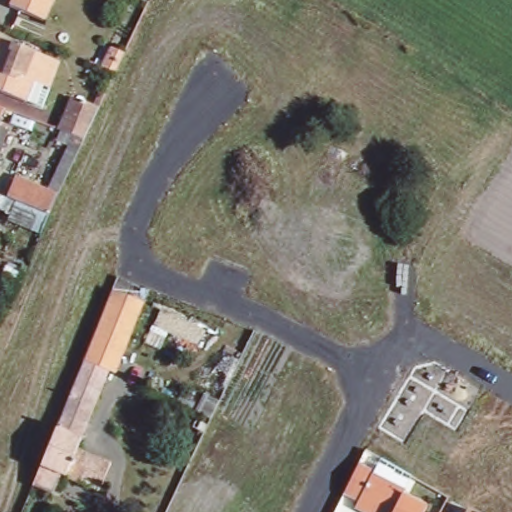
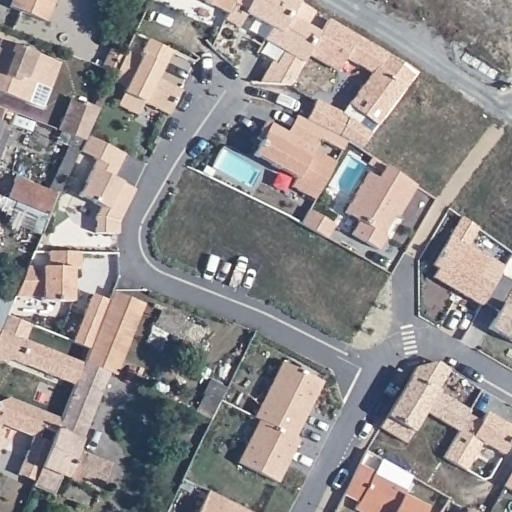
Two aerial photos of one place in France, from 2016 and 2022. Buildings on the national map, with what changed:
unchanged [(45,22),(11,7),(14,0),(56,0),(45,22)]
new [(272,27),(246,14),(240,26),(227,20),(230,12),(210,4),(201,0),(298,0),(300,1),(282,33),(272,27)]
new [(291,85),(262,82),(273,63),(277,65),(285,50),(266,39),(272,27),(282,33),(300,1),(315,11),(308,25),(322,33),(305,61),(291,85)]
new [(317,101),(343,114),(373,73),(346,57),(338,71),(308,54),(322,33),(329,20),(395,59),(417,73),(360,149),(347,141),(308,120),(317,101)]
new [(173,50),(165,64),(158,77),(183,90),(169,115),(145,101),(138,116),(117,105),(124,92),(126,89),(111,79),(114,73),(102,68),(111,47),(126,54),(128,52),(140,57),(148,40),(173,50)]
unchanged [(35,105),(0,90),(0,68),(2,65),(0,64),(0,55),(6,41),(25,48),(27,44),(34,46),(32,51),(52,59),(35,105)]
unchanged [(87,142),(60,132),(74,98),(103,110),(87,142)]
new [(347,141),(341,151),(321,140),(315,149),(336,161),(316,199),(292,188),(298,179),(253,154),(261,141),(258,139),(268,121),(288,132),(298,116),(347,141)]
unchanged [(0,142),(0,124),(6,126),(0,142)]
new [(126,154),(115,178),(123,183),(135,189),(120,222),(120,233),(96,233),(97,216),(102,206),(80,194),(99,158),(81,150),(59,198),(47,193),(69,148),(57,141),(60,132),(87,142),(90,136),(126,154)]
demolished [(321,162),(334,132),(361,148),(363,144),(394,158),(373,187),(321,162)]
new [(373,157),(380,162),(376,168),(369,163),(373,157)]
new [(417,186),(399,217),(396,214),(384,233),(388,236),(380,249),(352,233),(360,220),(345,211),(368,172),(378,178),(386,165),(417,186)]
unchanged [(51,221),(10,203),(19,181),(62,199),(51,221)]
new [(44,236),(9,220),(11,215),(0,210),(0,194),(12,200),(10,203),(51,221),(44,236)]
new [(480,228),(470,245),(505,265),(500,274),(483,303),(482,305),(434,277),(440,267),(435,264),(451,236),(462,217),(480,228)]
unchanged [(1,228),(0,230),(0,227),(1,228)]
new [(28,267),(49,267),(49,252),(80,252),(80,269),(73,269),(72,302),(42,301),(42,297),(15,297),(28,267)]
new [(512,281),(512,342),(489,328),(498,312),(483,303),(500,274),(512,281)]
new [(93,350),(74,340),(92,294),(112,301),(93,350)]
unchanged [(90,355),(93,350),(115,294),(145,307),(115,376),(87,364),(90,355)]
new [(31,325),(25,340),(73,360),(64,381),(10,359),(8,364),(0,360),(0,331),(7,316),(31,325)]
unchanged [(1,331),(0,332),(0,330),(1,331)]
new [(283,362),(323,382),(295,438),(260,420),(255,418),(283,362)]
new [(450,426),(425,411),(406,443),(380,428),(417,367),(437,362),(450,369),(437,391),(462,406),(470,411),(483,419),(488,409),(512,423),(512,440),(505,454),(482,442),(467,471),(444,458),(459,431),(450,426)]
unchanged [(115,376),(83,454),(115,467),(96,511),(36,489),(87,364),(115,376)]
new [(56,432),(43,426),(38,437),(51,443),(36,482),(19,475),(35,436),(2,423),(0,428),(0,402),(10,398),(61,418),(56,432)]
new [(260,420),(295,438),(299,440),(278,482),(239,463),(260,420)]
new [(5,431),(0,442),(0,429),(5,431)]
unchanged [(347,498),(356,479),(362,466),(377,473),(376,476),(410,492),(408,497),(431,509),(429,512),(359,512),(358,512),(362,505),(347,498)]
new [(512,490),(505,486),(512,474),(512,490)]
new [(251,512),(198,512),(209,491),(251,512)]
unchanged [(475,512),(464,512),(467,507),(475,512)]

